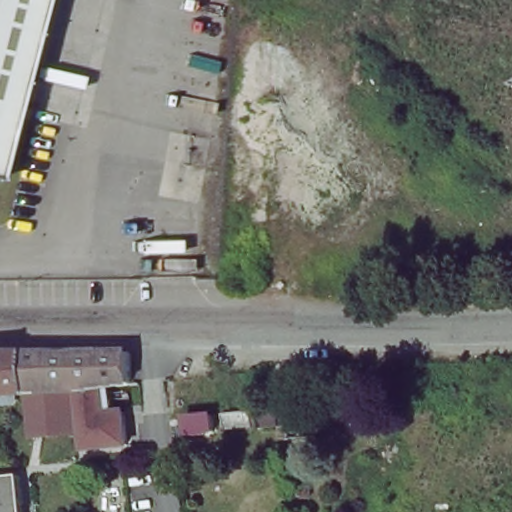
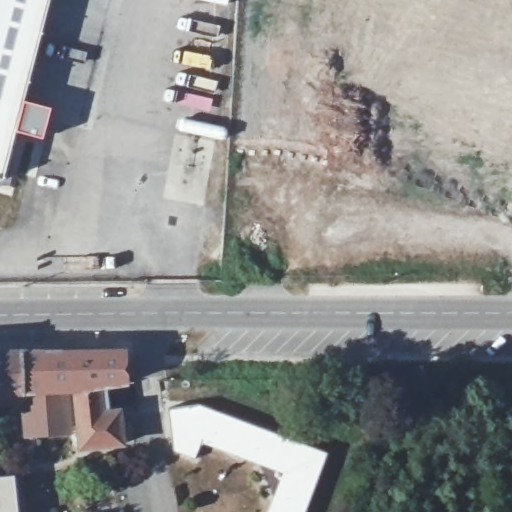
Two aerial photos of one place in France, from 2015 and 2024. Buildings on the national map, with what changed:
unchanged [(0,175),(0,0),(50,0),(0,175)]
unchanged [(27,341),(118,339),(121,372),(92,373),(93,378),(94,399),(101,399),(112,398),(113,405),(113,416),(114,431),(71,434),(69,409),(67,374),(58,375),(59,383),(19,386),(15,386),(15,377),(0,378),(0,342),(27,341)]
new [(65,394),(68,433),(23,437),(19,396),(15,396),(10,405),(0,406),(0,378),(15,377),(15,386),(19,386),(59,383),(58,375),(67,374),(68,393),(65,394)]
new [(326,453),(304,512),(267,512),(282,474),(202,442),(195,459),(173,451),(168,410),(199,406),(326,453)]
unchanged [(5,480),(16,479),(19,512),(0,512),(0,481),(5,480)]

